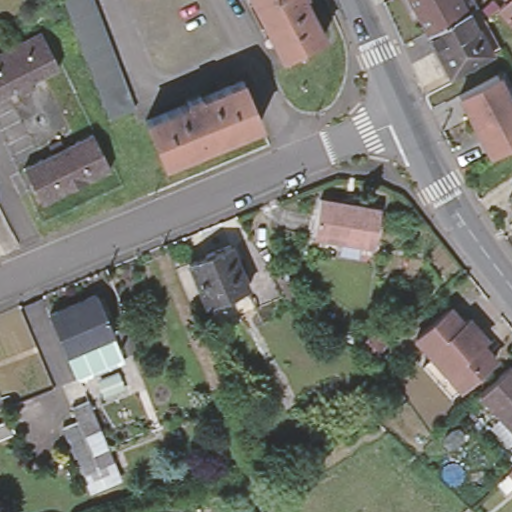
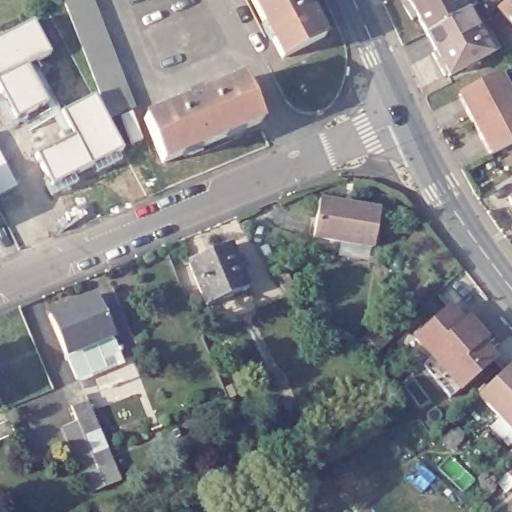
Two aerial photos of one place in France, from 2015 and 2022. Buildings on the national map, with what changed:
unchanged [(66,13),(61,0),(88,0),(89,2),(95,16),(100,30),(106,44),(112,58),(117,72),(123,85),(129,99),(135,113),(114,123),(107,109),(101,94),(95,81),(90,67),(84,54),(78,40),(72,26),(66,13)]
unchanged [(317,33),(275,54),(248,0),(300,0),(317,33)]
unchanged [(402,0),(469,0),(472,5),(462,9),(417,31),(402,0)]
unchanged [(504,1),(505,0),(512,0),(512,27),(495,8),(504,1)]
unchanged [(503,0),(505,0),(504,1),(503,0)]
unchanged [(462,9),(472,5),(477,15),(496,48),(435,78),(424,55),(428,53),(417,31),(462,9)]
new [(47,51),(25,64),(45,103),(12,120),(0,97),(0,38),(31,21),(47,51)]
demolished [(0,50),(2,49),(37,31),(55,68),(34,78),(37,86),(25,92),(12,99),(9,91),(0,95),(0,50)]
unchanged [(260,118),(164,160),(145,116),(242,75),(260,118)]
unchanged [(495,80),(512,110),(512,147),(490,158),(457,100),(495,80)]
new [(75,137),(60,111),(90,95),(120,149),(46,186),(34,155),(75,137)]
demolished [(45,157),(40,150),(53,143),(64,138),(68,145),(92,134),(109,168),(74,185),(40,202),(24,168),(45,157)]
unchanged [(372,244),(312,235),(318,198),(378,207),(372,244)]
unchanged [(504,204),(512,199),(512,216),(504,204)]
unchanged [(225,243),(242,285),(203,302),(185,261),(225,243)]
unchanged [(115,339),(69,358),(51,318),(98,298),(115,339)]
unchanged [(431,378),(419,363),(430,354),(414,337),(450,308),(460,320),(467,315),(483,335),(478,339),(493,357),(459,386),(452,391),(444,384),(435,380),(431,378)]
unchanged [(385,348),(377,355),(362,348),(357,346),(373,333),(385,348)]
unchanged [(125,361),(80,382),(76,381),(69,358),(115,339),(125,361)]
unchanged [(512,370),(512,431),(475,390),(505,363),(512,370)]
unchanged [(79,472),(74,457),(64,434),(82,425),(77,414),(94,407),(113,454),(97,461),(97,465),(79,472)]
unchanged [(0,439),(0,423),(7,420),(12,434),(0,439)]
unchanged [(508,474),(512,471),(512,479),(508,474)]

